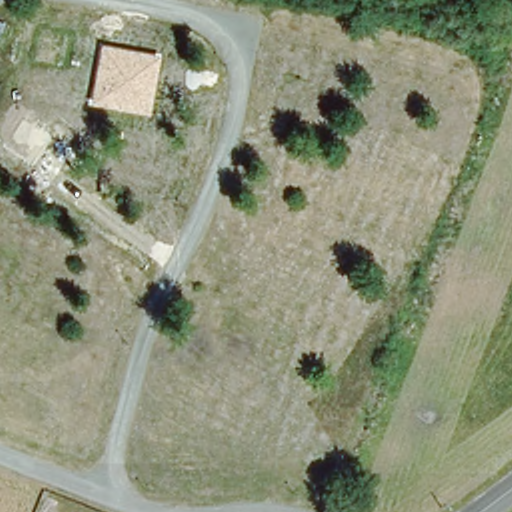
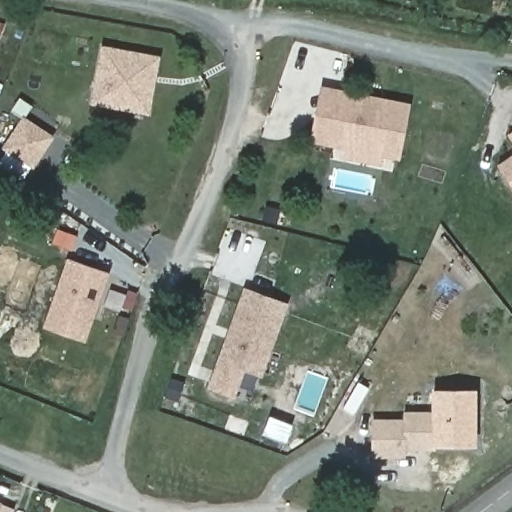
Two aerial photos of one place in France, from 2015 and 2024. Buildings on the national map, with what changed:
unchanged [(149,116),(89,105),(100,46),(160,56),(149,116)]
new [(321,110),(325,87),(343,91),(364,96),(391,101),(410,104),(400,156),(382,152),(380,162),(348,156),(350,146),(315,139),(321,110)]
new [(32,169),(1,148),(21,116),(53,136),(32,169)]
new [(501,166),(512,158),(512,182),(501,166)]
new [(84,342),(41,327),(65,257),(109,272),(84,342)]
new [(248,290),(288,305),(262,375),(245,368),(235,396),(213,387),(248,290)]
new [(438,412),(438,388),(480,389),(481,447),(438,447),(438,412)]
new [(377,418),(409,419),(409,411),(438,412),(438,447),(409,447),(409,455),(377,454),(377,418)]
new [(10,509),(9,512),(0,512),(0,502),(1,502),(1,505),(10,509)]

